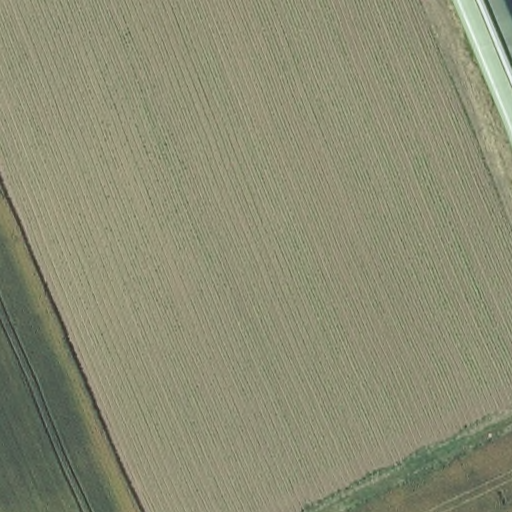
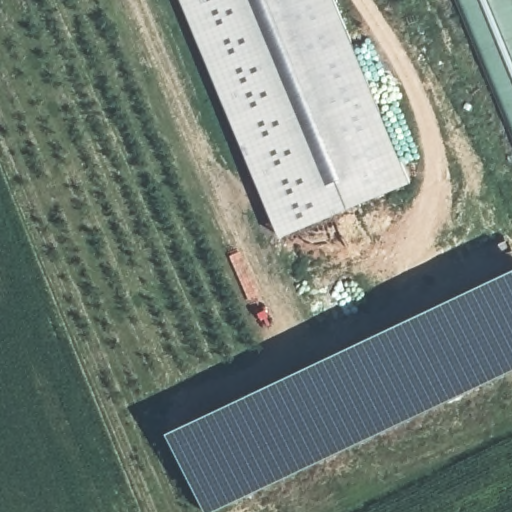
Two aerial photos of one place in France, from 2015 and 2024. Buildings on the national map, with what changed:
new [(276,238),(178,0),(330,0),(406,184),(276,238)]
unchanged [(512,0),(512,113),(466,0),(512,0)]
new [(512,370),(330,454),(213,512),(205,512),(166,430),(512,268),(512,370)]

